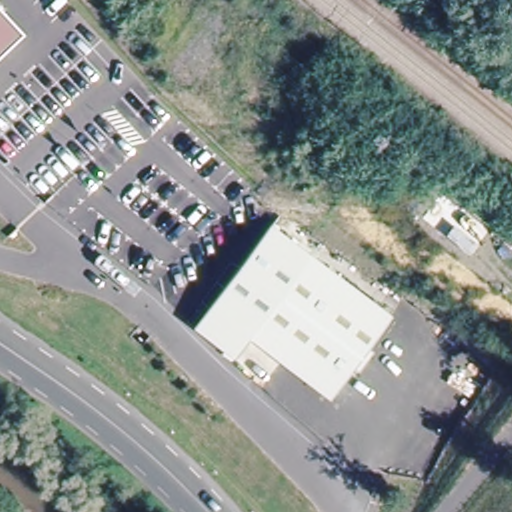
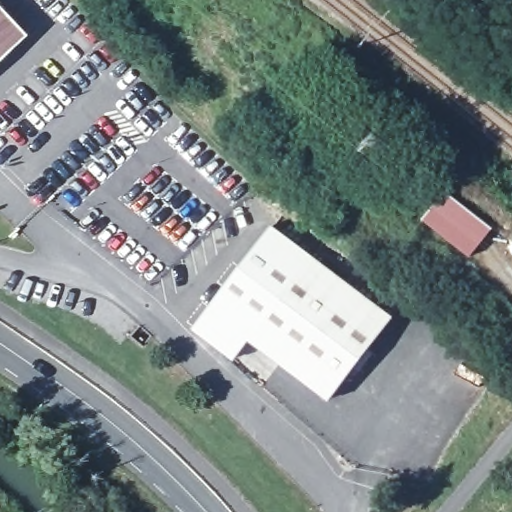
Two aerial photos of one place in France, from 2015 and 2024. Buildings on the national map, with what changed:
unchanged [(26,34),(16,43),(0,59),(0,6),(26,34)]
new [(421,222),(442,192),(493,226),(472,257),(421,222)]
unchanged [(245,339),(231,358),(191,328),(269,227),(306,256),(245,339)]
unchanged [(389,317),(328,400),(245,339),(306,256),(389,317)]

